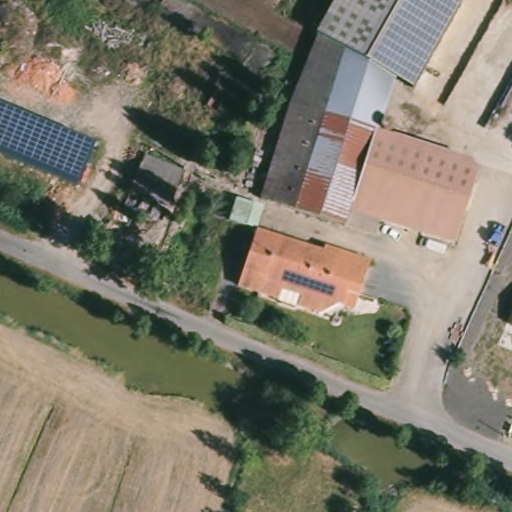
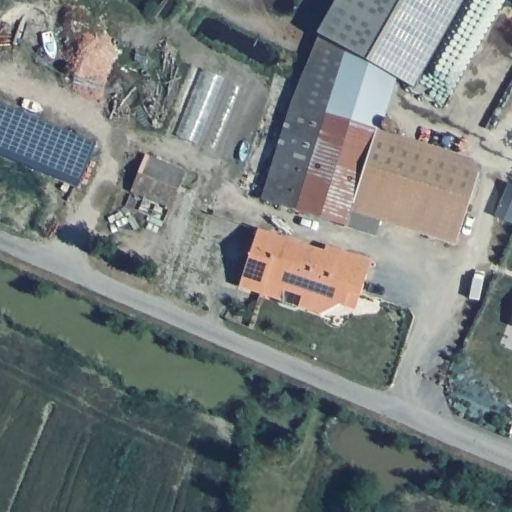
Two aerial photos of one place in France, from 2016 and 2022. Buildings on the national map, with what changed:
unchanged [(320,36),(315,33),(333,0),(462,0),(413,89),(397,80),(363,62),(320,36)]
unchanged [(453,250),(349,215),(343,230),(265,203),(294,106),(305,74),(320,36),(363,62),(397,80),(380,131),(463,161),(467,162),(474,166),(477,173),(473,187),(453,250)]
unchanged [(0,156),(0,104),(94,142),(76,187),(0,156)]
unchanged [(165,207),(130,195),(143,158),(179,172),(165,207)]
unchanged [(345,311),(324,323),(257,301),(257,298),(235,290),(253,231),(319,253),(320,247),(374,265),(361,302),(357,314),(345,311)]
unchanged [(511,326),(512,324),(512,327),(511,326)]

